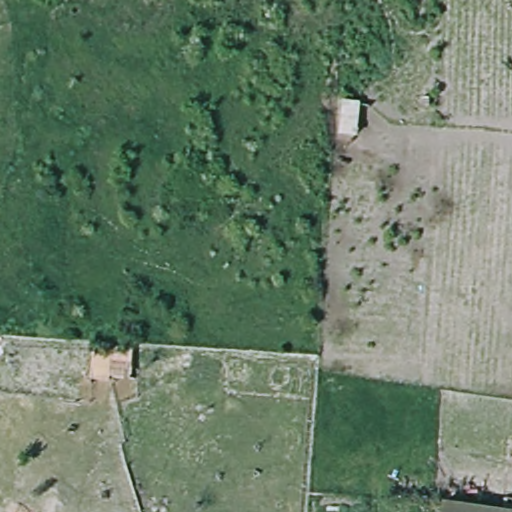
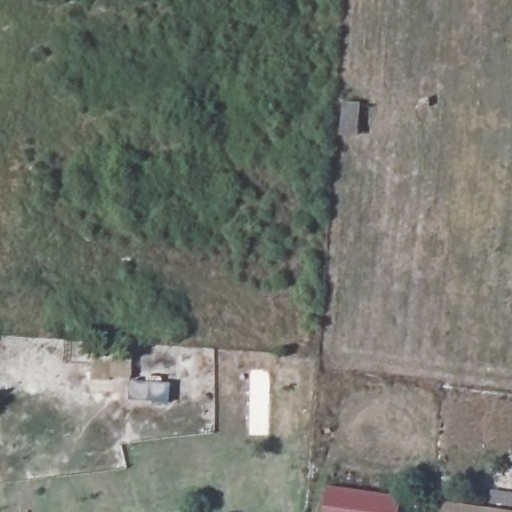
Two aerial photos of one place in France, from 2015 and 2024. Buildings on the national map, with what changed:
new [(400,497),(397,512),(321,512),(326,486),(400,497)]
unchanged [(477,512),(442,512),(442,508),(477,510),(477,512)]
unchanged [(505,512),(477,512),(477,510),(505,512)]

